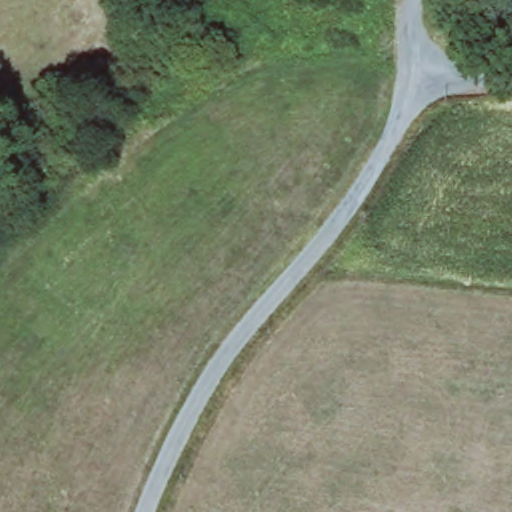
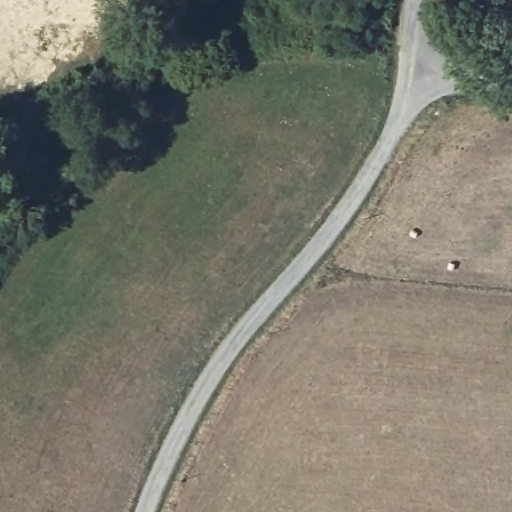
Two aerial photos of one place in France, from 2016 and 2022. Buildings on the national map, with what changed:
[]

